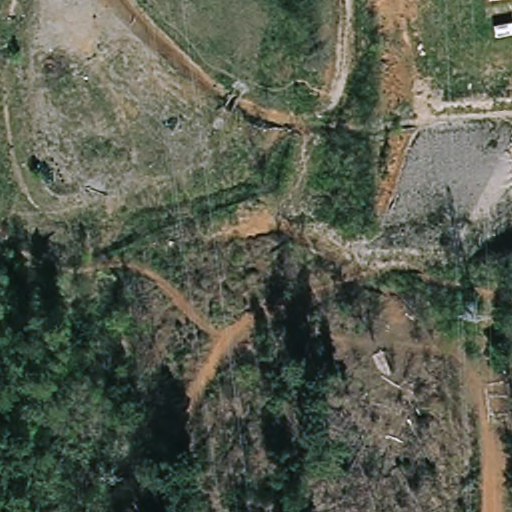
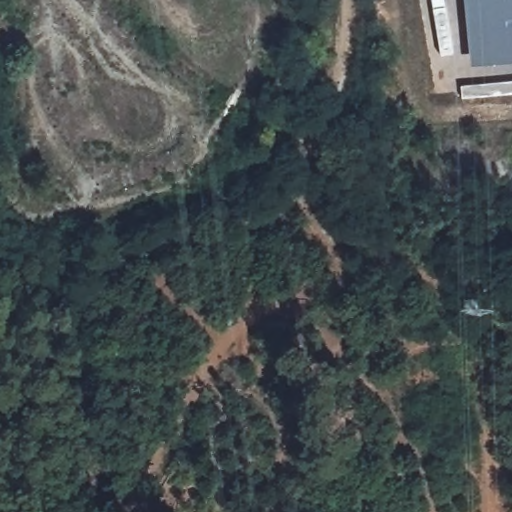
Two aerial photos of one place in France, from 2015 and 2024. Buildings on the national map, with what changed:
new [(464,0),(512,0),(512,61),(469,65),(464,0)]

